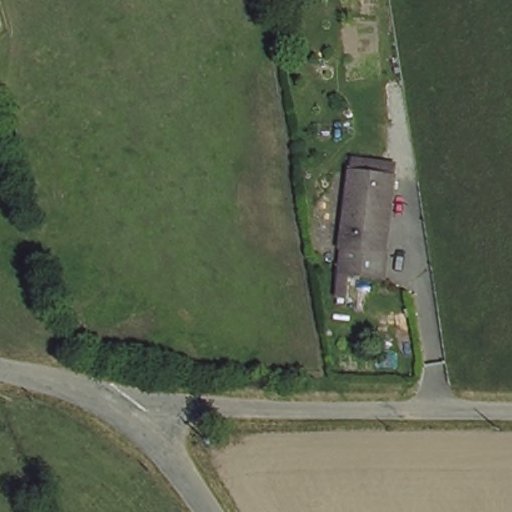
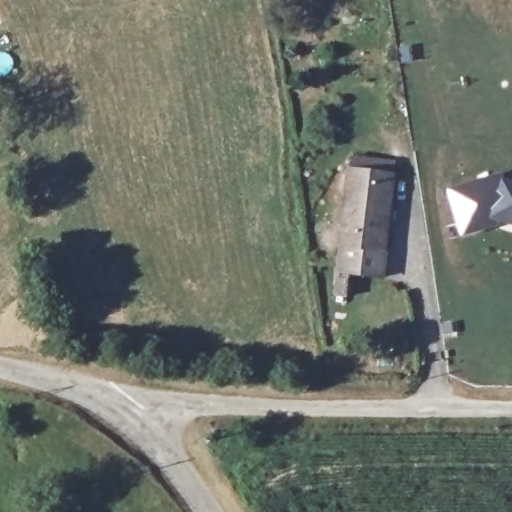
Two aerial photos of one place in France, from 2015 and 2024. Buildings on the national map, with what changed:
unchanged [(393,170),(383,241),(390,242),(383,271),(343,266),(347,237),(338,235),(348,165),(393,170)]
new [(505,172),(509,174),(512,175),(512,229),(510,228),(502,227),(460,238),(444,186),(504,170),(505,172)]

